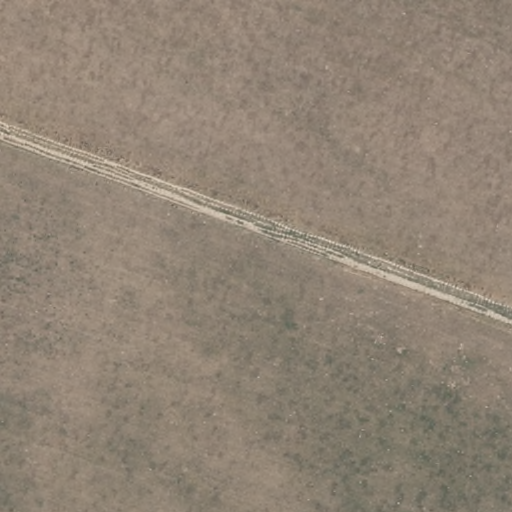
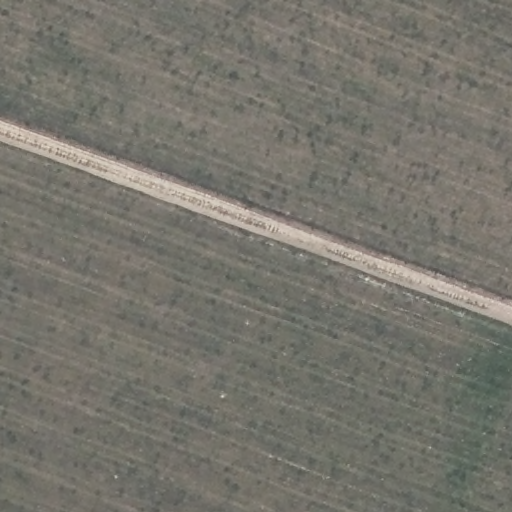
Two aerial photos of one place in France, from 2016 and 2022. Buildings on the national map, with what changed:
[]

